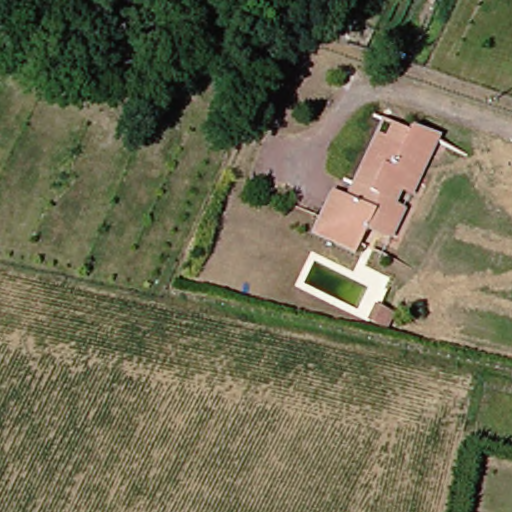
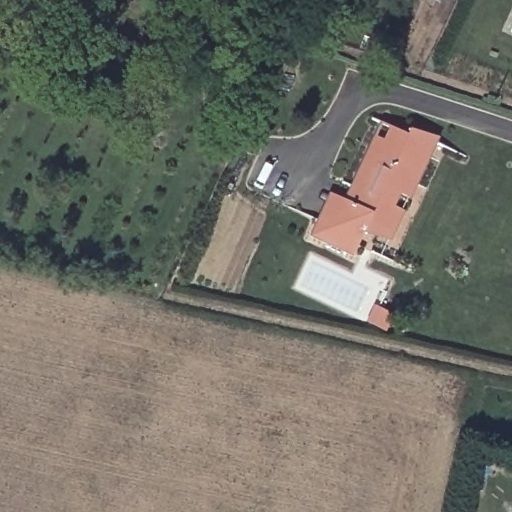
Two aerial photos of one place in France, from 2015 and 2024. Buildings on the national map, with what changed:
unchanged [(352,202),(377,125),(406,133),(408,126),(434,136),(402,228),(376,219),(362,255),(317,239),(325,213),(332,195),(352,202)]
unchanged [(395,308),(415,312),(410,330),(391,324),(395,308)]

